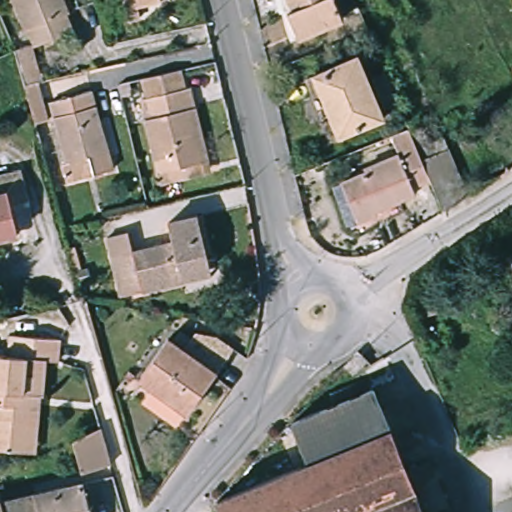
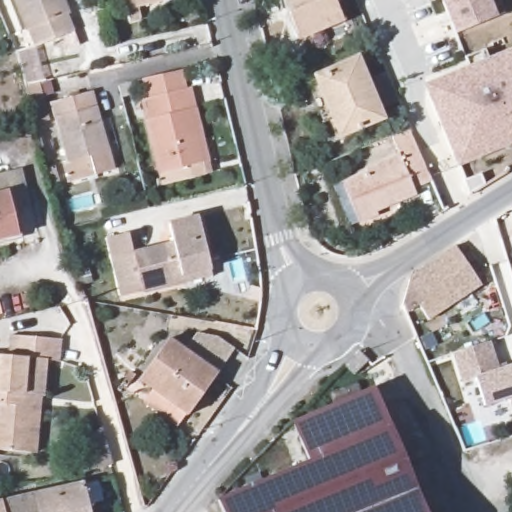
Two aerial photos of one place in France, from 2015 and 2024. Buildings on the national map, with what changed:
unchanged [(35,47),(17,0),(61,0),(74,32),(35,47)]
unchanged [(142,18),(130,20),(126,0),(161,0),(138,6),(142,18)]
unchanged [(283,12),(288,10),(284,0),(331,0),(340,22),(295,41),(283,12)]
new [(450,0),(490,0),(497,17),(466,30),(462,31),(454,12),(450,0)]
new [(512,145),(457,168),(423,85),(512,48),(512,145)]
unchanged [(31,49),(35,63),(20,66),(17,51),(31,49)]
unchanged [(339,135),(327,105),(322,106),(310,75),(353,57),(378,119),(339,135)]
unchanged [(180,85),(185,84),(206,171),(157,182),(137,95),(143,94),(138,74),(175,65),(180,85)]
unchanged [(380,109),(367,79),(382,74),(394,102),(380,109)]
unchanged [(47,115),(35,119),(27,85),(38,83),(47,115)]
unchanged [(112,169),(73,180),(52,102),(92,91),(112,169)]
unchanged [(409,187),(411,194),(373,210),(374,214),(355,222),(338,183),(362,174),(361,170),(394,155),(386,137),(405,130),(413,149),(426,180),(409,187)]
demolished [(426,180),(413,149),(438,138),(463,197),(440,212),(426,180)]
new [(478,171),(486,185),(470,195),(464,179),(478,171)]
unchanged [(5,174),(11,174),(15,177),(21,203),(10,205),(17,234),(0,238),(0,175),(5,174)]
unchanged [(194,218),(208,276),(117,297),(102,239),(124,233),(129,252),(170,241),(166,224),(194,218)]
new [(481,285),(428,320),(418,305),(406,313),(401,305),(411,275),(454,245),(481,285)]
unchanged [(512,267),(512,277),(509,267),(512,267)]
demolished [(419,300),(433,297),(438,315),(424,318),(419,300)]
unchanged [(211,338),(229,350),(183,415),(136,380),(165,340),(170,342),(177,333),(188,341),(193,335),(211,338)]
unchanged [(55,361),(42,360),(33,453),(0,451),(0,355),(6,356),(8,335),(56,340),(55,361)]
new [(498,372),(512,368),(512,412),(508,400),(484,407),(475,379),(463,383),(454,355),(489,342),(498,372)]
unchanged [(369,361),(354,377),(344,367),(359,351),(369,361)]
unchanged [(218,501),(310,464),(293,421),(373,390),(407,471),(430,463),(447,506),(433,512),(223,512),(218,501)]
unchanged [(82,472),(74,442),(102,430),(112,465),(82,472)]
unchanged [(55,490),(79,485),(86,512),(60,512),(55,490)]
unchanged [(0,502),(28,495),(32,495),(55,490),(60,512),(2,512),(0,502)]
unchanged [(2,512),(0,512),(0,502),(2,512)]
unchanged [(449,511),(450,512),(448,512),(449,511)]

